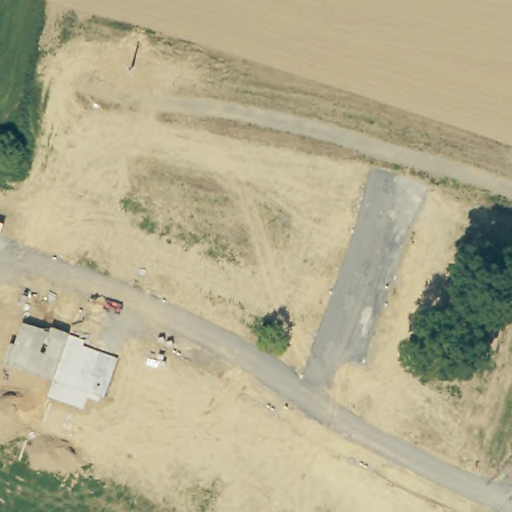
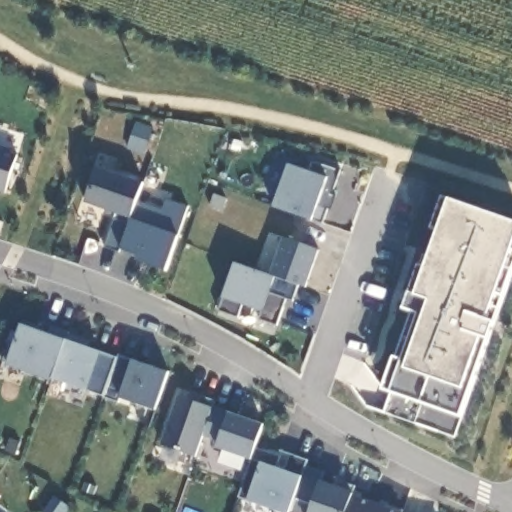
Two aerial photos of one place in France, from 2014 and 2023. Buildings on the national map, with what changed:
new [(18,155),(6,192),(0,191),(0,149),(18,155)]
unchanged [(311,220),(273,205),(289,163),(326,177),(309,170),(314,161),(339,170),(331,195),(335,197),(331,207),(328,206),(321,224),(311,220)]
new [(130,219),(119,252),(104,247),(117,213),(84,202),(96,167),(143,182),(130,219)]
new [(130,219),(137,199),(164,211),(167,200),(187,207),(179,235),(166,270),(136,260),(138,255),(121,249),(119,252),(130,219)]
new [(403,360),(417,313),(403,307),(419,265),(426,267),(450,199),(512,220),(512,247),(487,317),(495,321),(488,338),(460,415),(453,436),(383,411),(393,391),(384,389),(394,356),(403,360)]
new [(285,237),(319,250),(307,287),(298,284),(275,277),(271,275),(285,237)]
new [(292,300),(286,298),(276,325),(259,320),(263,311),(241,303),(236,318),(218,311),(223,297),(235,262),(275,277),(298,284),(292,300)]
new [(154,410),(119,398),(117,402),(103,396),(87,390),(51,377),(51,380),(6,365),(20,325),(23,325),(23,321),(43,328),(45,330),(45,332),(48,333),(50,326),(91,341),(90,347),(101,351),(117,357),(119,354),(133,360),(168,371),(154,410)]
new [(253,448),(250,458),(216,448),(218,440),(202,435),(194,457),(160,445),(180,395),(215,406),(229,412),(263,424),(253,448)]
new [(301,476),(288,512),(283,512),(247,500),(239,497),(253,460),(250,458),(253,448),(280,456),(276,465),(286,467),(289,454),(307,459),(305,465),(301,476)]
new [(346,512),(288,512),(301,476),(305,465),(324,472),(321,483),(352,495),(346,512)]
new [(352,495),(401,512),(346,512),(352,495)]

